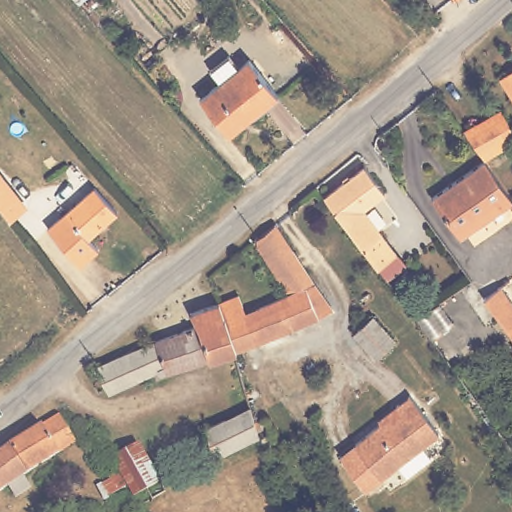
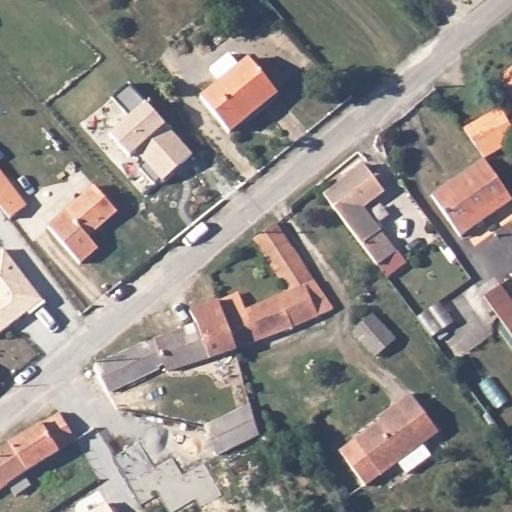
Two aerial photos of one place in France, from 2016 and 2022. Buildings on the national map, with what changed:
unchanged [(203,94),(222,79),(212,65),(231,50),(241,62),(251,55),(280,90),(232,129),(203,94)]
unchanged [(512,71),(512,77),(509,72),(512,71)]
new [(129,116),(111,97),(128,82),(192,154),(162,180),(160,179),(154,184),(138,166),(144,160),(136,150),(129,156),(110,135),(129,116)]
unchanged [(464,133),(482,122),(490,117),(502,110),(505,117),(512,131),(512,143),(499,150),(482,161),(464,133)]
unchanged [(457,239),(429,199),(483,162),(497,180),(512,201),(457,239)]
unchanged [(402,256),(383,270),(343,214),(328,195),(369,166),(388,193),(367,207),(402,256)]
unchanged [(13,220),(0,204),(0,172),(28,208),(13,220)]
unchanged [(100,243),(82,258),(50,221),(97,181),(119,206),(90,231),(100,243)]
unchanged [(235,347),(227,323),(217,301),(222,299),(237,293),(245,310),(290,291),(255,239),(277,223),(333,308),(235,347)]
new [(4,249),(43,301),(0,333),(0,252),(4,249)]
unchanged [(489,294),(505,283),(512,293),(512,327),(503,315),(489,294)]
unchanged [(168,370),(164,365),(110,390),(102,378),(92,381),(85,370),(183,328),(175,319),(217,301),(227,323),(235,347),(168,370)]
unchanged [(387,350),(365,325),(382,310),(405,335),(387,350)]
unchanged [(342,449),(357,439),(401,407),(397,402),(411,392),(439,430),(422,442),(431,454),(407,471),(398,460),(381,472),(366,483),(342,449)]
unchanged [(235,445),(216,455),(205,427),(251,405),(258,432),(235,445)]
unchanged [(31,480),(14,491),(8,483),(0,488),(0,449),(58,412),(74,438),(26,471),(31,480)]
unchanged [(109,485),(102,473),(120,464),(117,457),(113,450),(139,436),(160,473),(165,482),(151,491),(145,481),(134,487),(127,475),(122,478),(109,485)]

